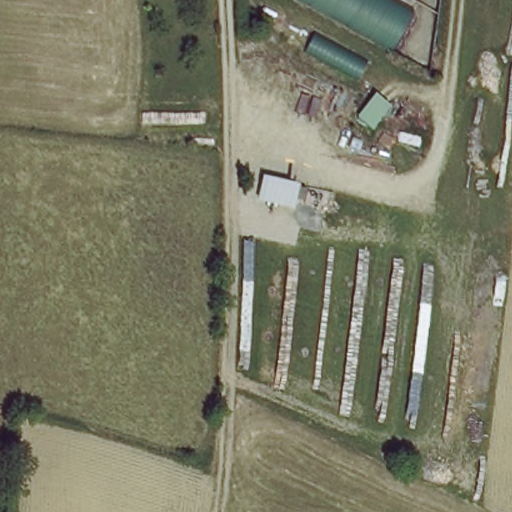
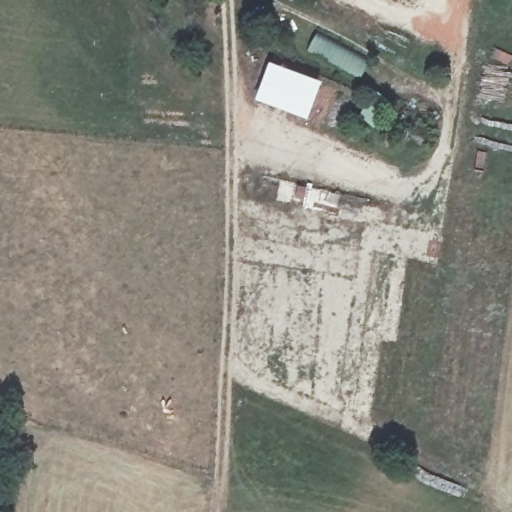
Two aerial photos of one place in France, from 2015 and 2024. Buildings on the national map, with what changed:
demolished [(393,53),(301,0),(397,0),(416,10),(393,53)]
new [(368,63),(363,72),(310,46),(315,38),(368,63)]
new [(269,61),(322,81),(308,120),(255,101),(269,61)]

